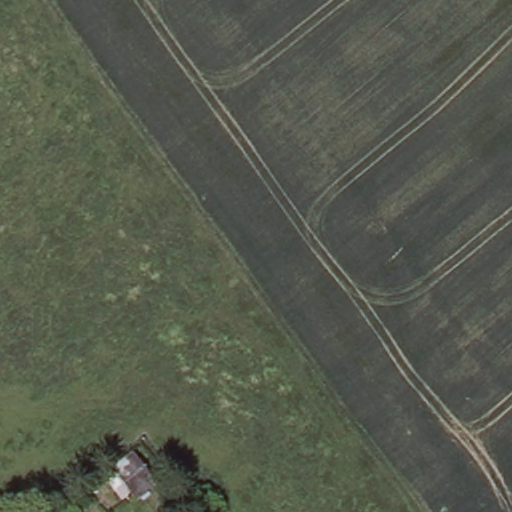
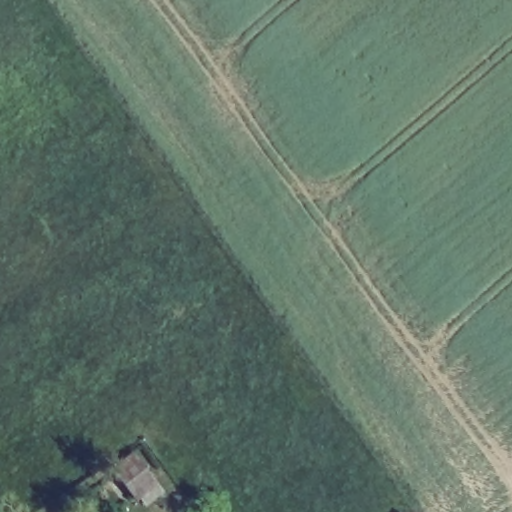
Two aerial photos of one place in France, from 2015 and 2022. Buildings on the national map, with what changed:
unchanged [(141,458),(155,479),(135,493),(121,473),(141,458)]

